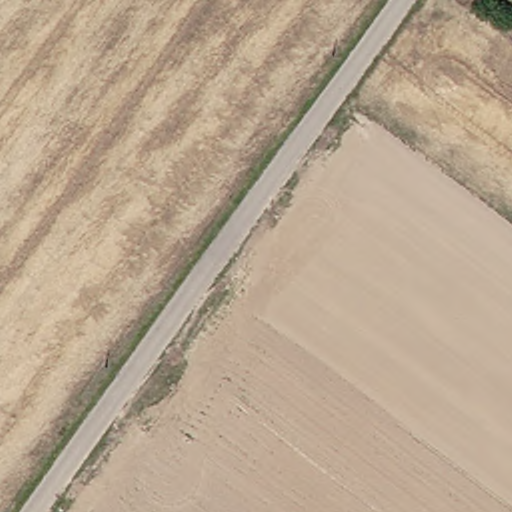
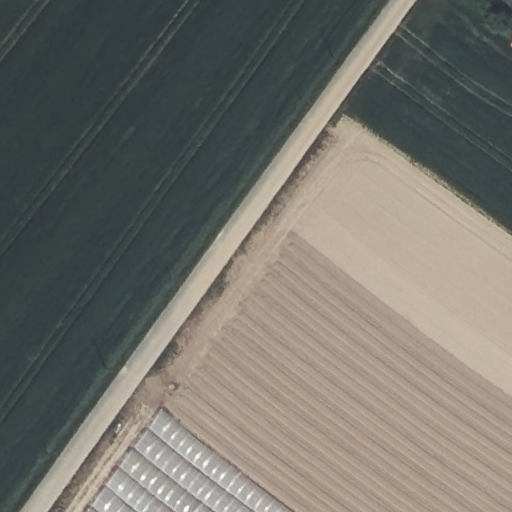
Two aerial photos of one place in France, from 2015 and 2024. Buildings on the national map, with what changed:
new [(163,408),(229,462),(297,512),(88,512),(163,408)]

